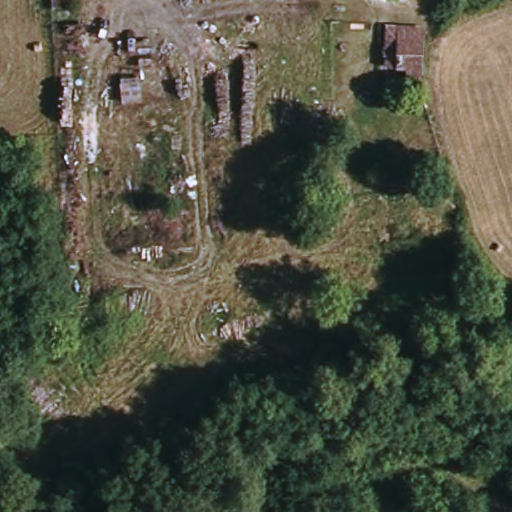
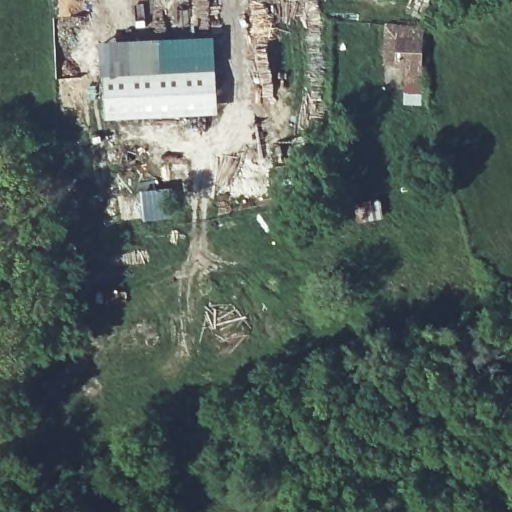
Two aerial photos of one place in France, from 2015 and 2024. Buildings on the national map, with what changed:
unchanged [(395,33),(421,34),(420,70),(394,68),(395,33)]
new [(217,113),(104,120),(99,42),(213,36),(217,113)]
unchanged [(401,131),(406,148),(389,156),(382,137),(401,131)]

